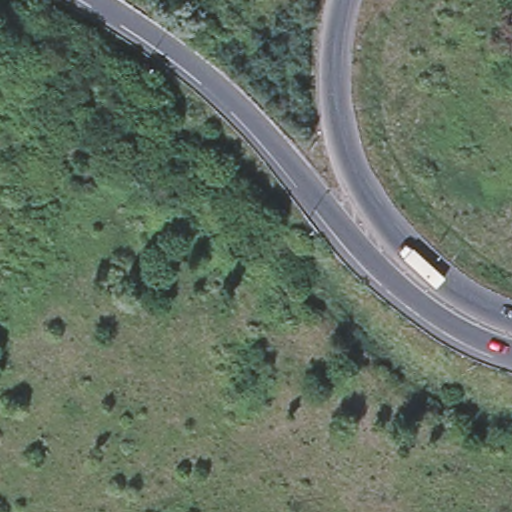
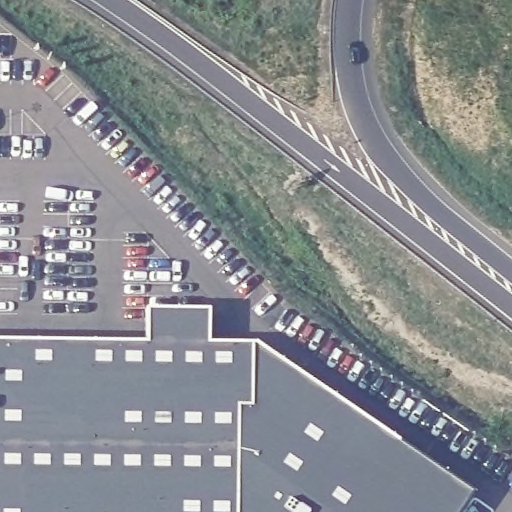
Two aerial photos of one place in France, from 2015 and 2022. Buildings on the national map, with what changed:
new [(145,343),(145,309),(207,311),(207,345),(254,345),(471,493),(459,512),(0,512),(0,342),(145,343)]

